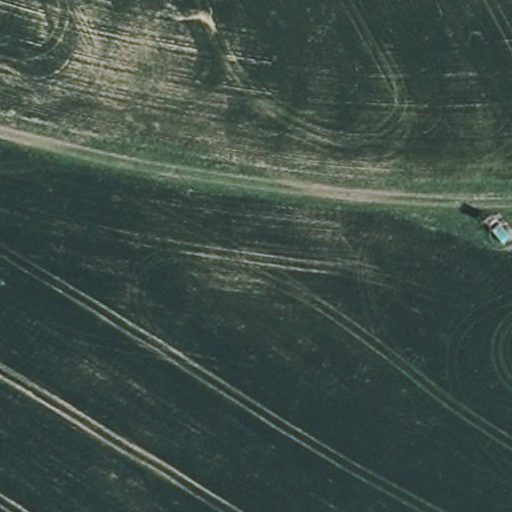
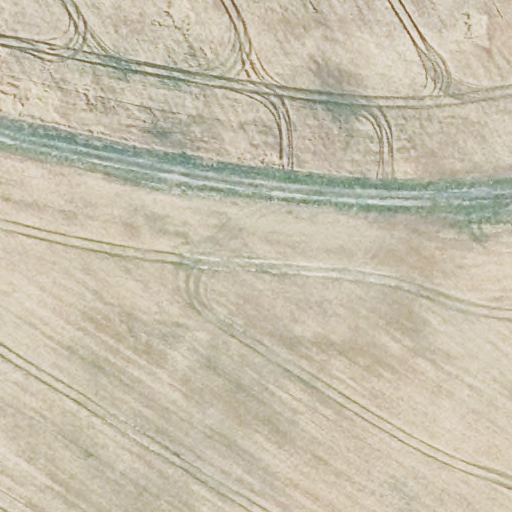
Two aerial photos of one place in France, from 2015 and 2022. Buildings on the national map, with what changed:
unchanged [(509,238),(503,244),(493,232),(498,227),(509,238)]

